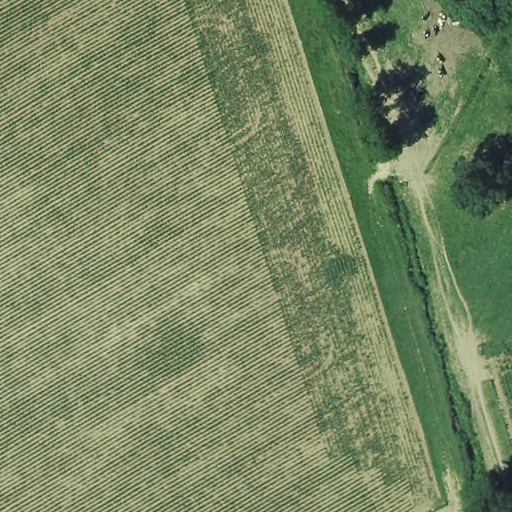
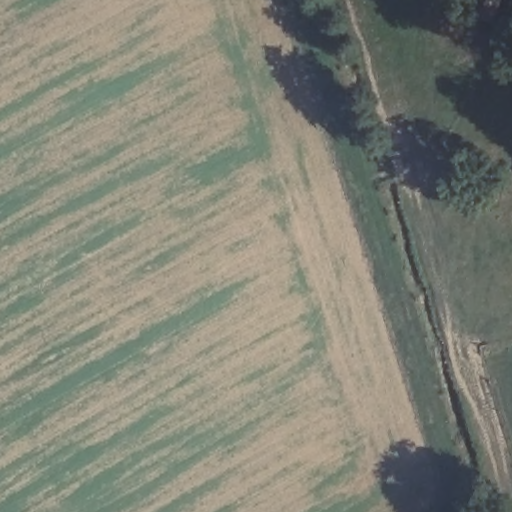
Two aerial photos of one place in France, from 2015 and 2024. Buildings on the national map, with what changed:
unchanged [(487,21),(446,6),(448,0),(496,0),(487,21)]

